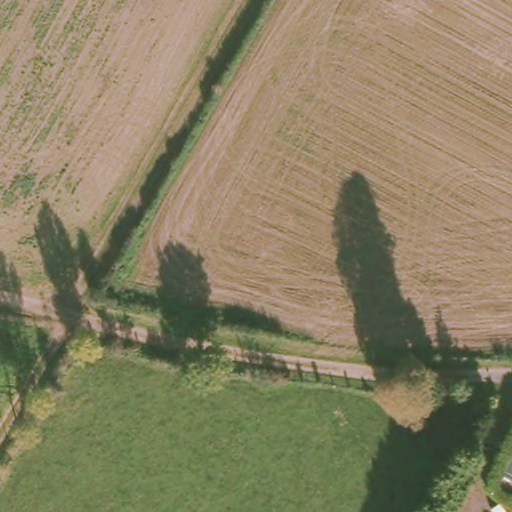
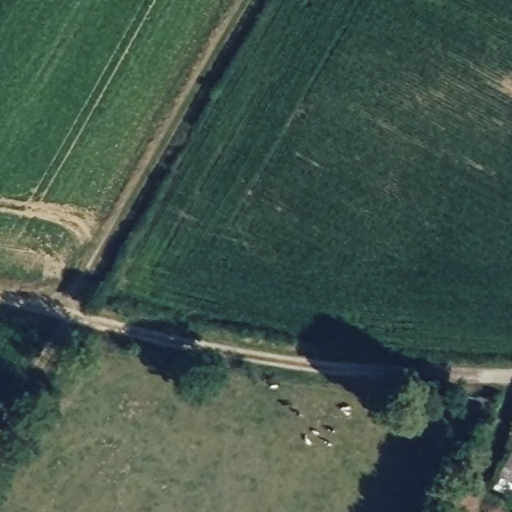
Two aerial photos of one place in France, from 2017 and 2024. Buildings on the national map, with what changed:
unchanged [(451,512),(444,512),(446,510),(451,512)]

